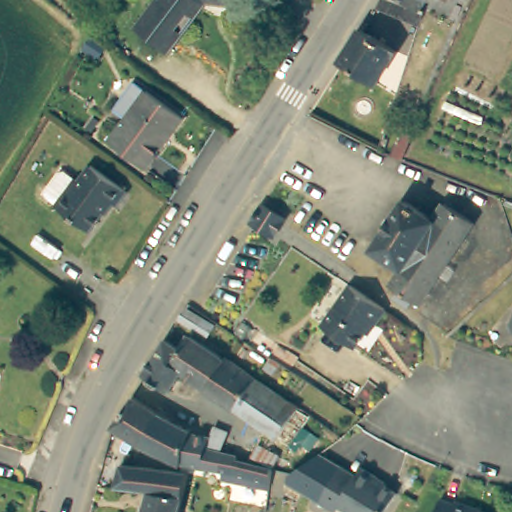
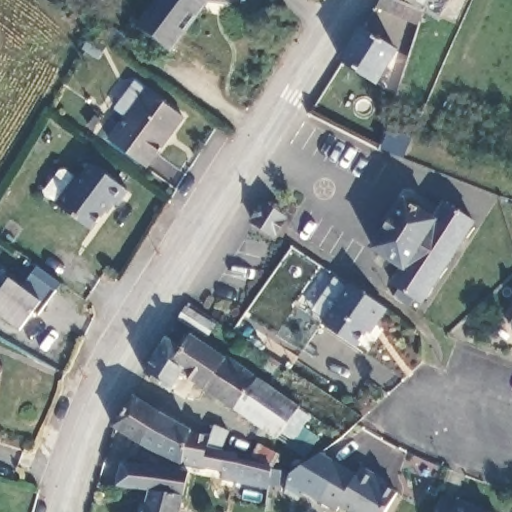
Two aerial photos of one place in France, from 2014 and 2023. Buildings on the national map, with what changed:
unchanged [(137,25),(154,0),(203,0),(169,45),(137,25)]
unchanged [(210,0),(223,0),(223,1),(210,0)]
unchanged [(374,6),(378,0),(392,0),(407,7),(402,19),(374,6)]
unchanged [(427,0),(418,12),(401,0),(427,0)]
unchanged [(411,9),(418,12),(422,14),(420,20),(408,16),(411,9)]
unchanged [(338,56),(359,25),(393,48),(372,79),(338,56)]
unchanged [(116,105),(135,80),(182,119),(145,168),(108,139),(127,116),(116,105)]
unchanged [(46,189),(59,172),(65,172),(74,179),(79,180),(91,165),(126,192),(115,208),(110,203),(89,229),(55,205),(56,202),(46,195),(46,189)]
unchanged [(406,288),(394,280),(403,264),(376,247),(406,199),(433,217),(443,202),(474,220),(426,300),(417,295),(412,302),(403,297),(401,294),(406,288)]
unchanged [(264,202),(284,218),(272,234),(252,219),(264,202)]
new [(40,314),(36,310),(21,330),(0,316),(0,295),(2,293),(0,292),(0,273),(10,280),(22,289),(38,265),(62,284),(40,314)]
unchanged [(378,329),(375,327),(359,350),(325,328),(350,287),(353,289),(389,314),(378,329)]
unchanged [(200,314),(192,325),(177,314),(185,300),(200,314)]
unchanged [(512,320),(512,324),(511,322),(512,320)]
unchanged [(180,374),(166,392),(141,375),(145,363),(166,331),(185,345),(195,332),(211,344),(231,359),(255,378),(232,413),(205,393),(187,379),(180,374)]
unchanged [(297,412),(273,442),(232,413),(255,378),(297,412)]
unchanged [(193,460),(142,438),(117,426),(130,396),(157,411),(206,434),(209,422),(220,424),(221,425),(224,426),(220,446),(236,450),(235,454),(256,457),(257,458),(272,459),(268,481),(254,479),(232,475),(222,473),(215,472),(216,464),(193,460)]
unchanged [(287,485),(291,476),(318,456),(341,469),(321,503),(287,485)]
unchanged [(124,457),(131,458),(146,461),(189,467),(187,482),(186,491),(145,485),(119,481),(124,457)]
unchanged [(354,476),(359,465),(377,475),(376,479),(397,490),(385,512),(354,512),(342,507),(338,512),(321,503),(341,469),(354,476)]
unchanged [(145,485),(186,491),(181,512),(139,512),(145,485)]
unchanged [(437,496),(456,499),(457,497),(501,504),(499,512),(434,512),(437,496)]

